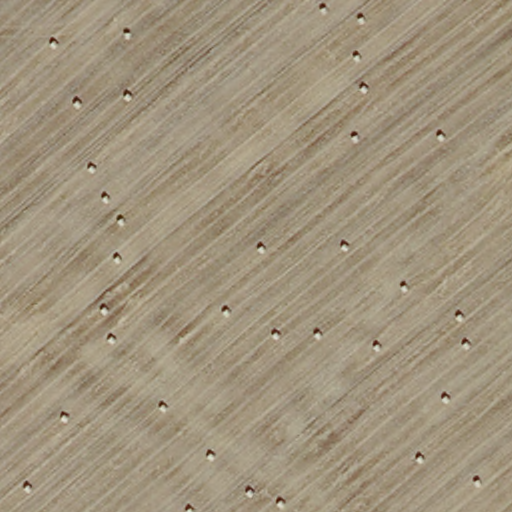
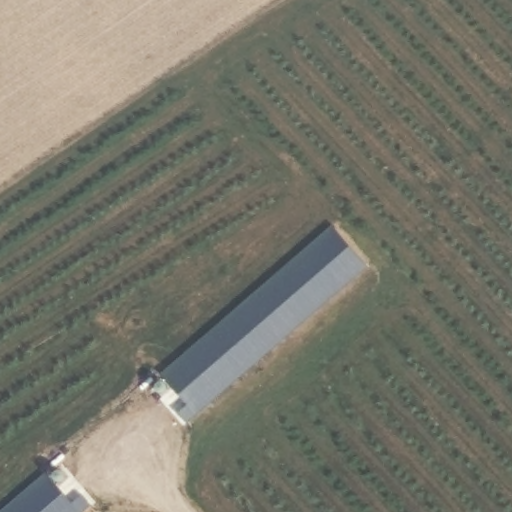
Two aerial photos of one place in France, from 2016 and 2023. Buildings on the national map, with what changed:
demolished [(364,84),(350,104),(332,95),(345,73),(364,84)]
new [(326,217),(364,258),(192,405),(157,369),(326,217)]
new [(82,503),(72,512),(0,512),(0,499),(42,462),(82,503)]

